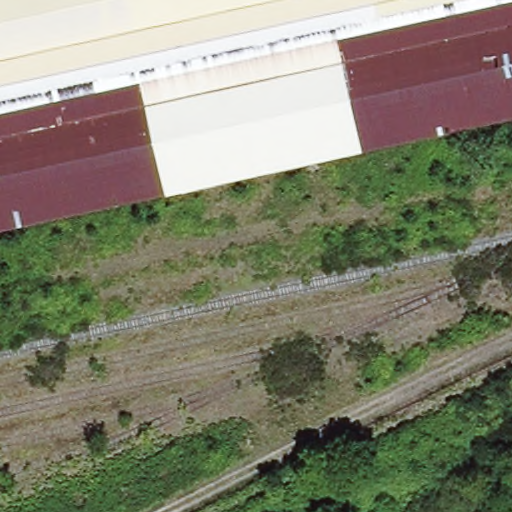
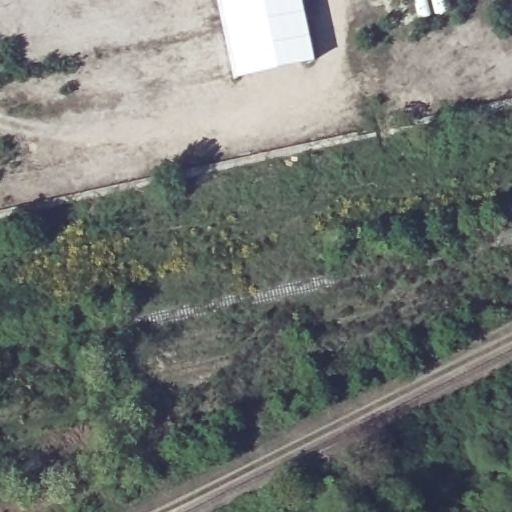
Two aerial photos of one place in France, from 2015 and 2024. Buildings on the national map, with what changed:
demolished [(0,228),(0,0),(512,0),(512,116),(0,228)]
new [(230,80),(215,16),(212,0),(299,0),(312,62),(230,80)]

